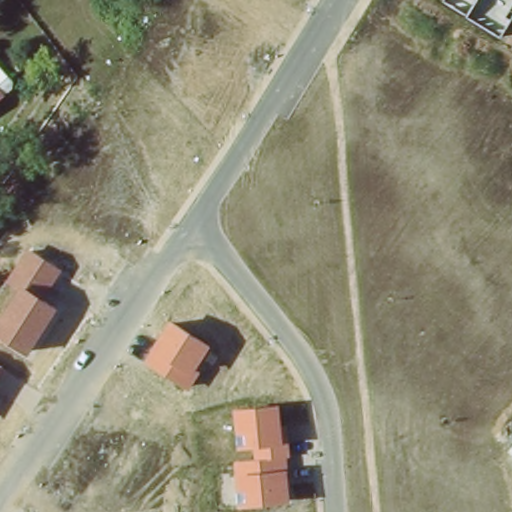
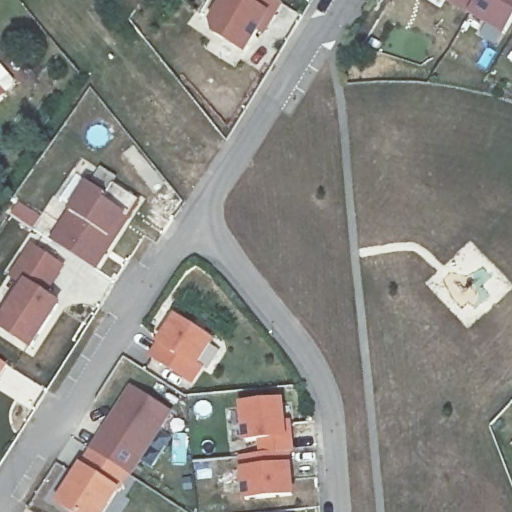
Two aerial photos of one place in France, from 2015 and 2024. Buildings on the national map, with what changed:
new [(274,0),(284,6),(263,40),(257,36),(243,57),(212,39),(208,22),(221,0),(274,0)]
unchanged [(451,0),(512,0),(512,22),(505,35),(451,0)]
unchanged [(3,92),(0,94),(0,89),(3,92)]
new [(87,187),(104,197),(110,187),(136,204),(125,221),(121,218),(109,237),(113,240),(92,273),(50,247),(87,187)]
unchanged [(50,296),(62,305),(32,352),(0,332),(0,322),(24,287),(9,278),(32,245),(66,267),(50,296)]
unchanged [(215,342),(201,367),(205,369),(192,387),(148,358),(157,346),(175,317),(215,342)]
unchanged [(0,377),(0,362),(7,366),(0,377)]
new [(108,425),(129,392),(166,416),(127,478),(125,477),(89,455),(104,432),(108,425)]
unchanged [(287,426),(292,425),(296,467),(293,468),(295,500),(243,502),(239,457),(260,456),(259,443),(241,443),(238,405),(284,399),(287,426)]
new [(89,455),(125,477),(103,512),(63,512),(56,507),(89,455)]

